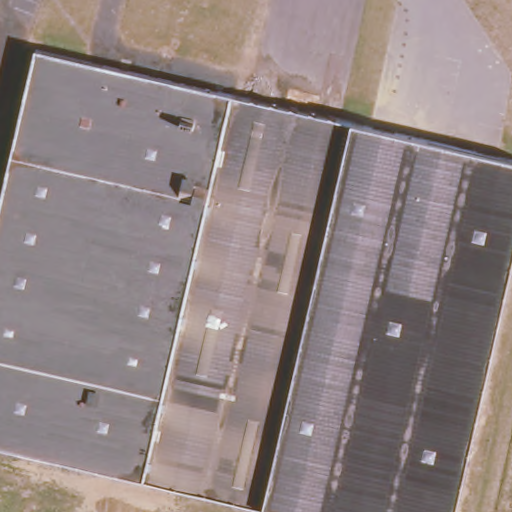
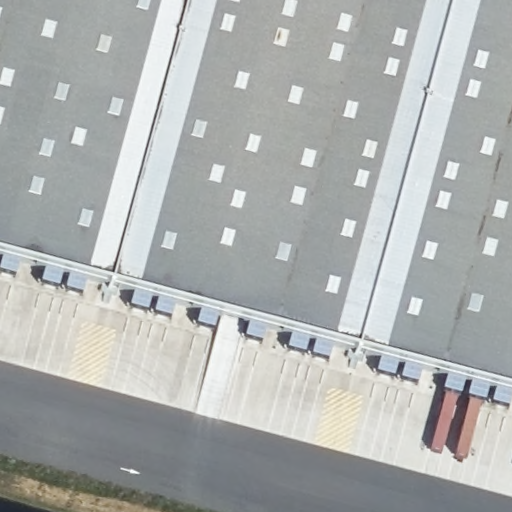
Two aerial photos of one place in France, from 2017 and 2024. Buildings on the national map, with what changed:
new [(0,260),(0,0),(512,0),(512,399),(0,260)]
demolished [(272,512),(263,510),(0,450),(0,188),(32,52),(350,124),(512,162),(512,250),(457,512),(272,512)]

